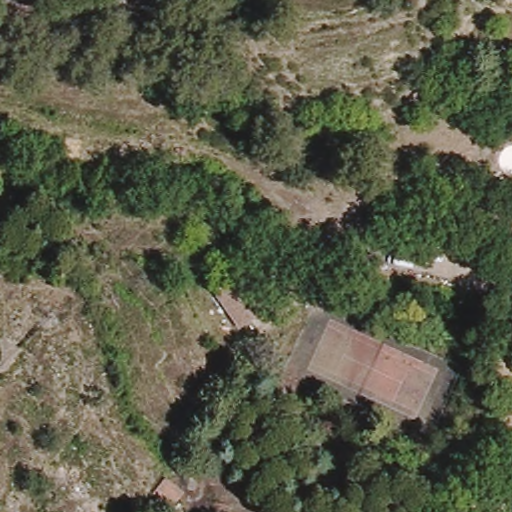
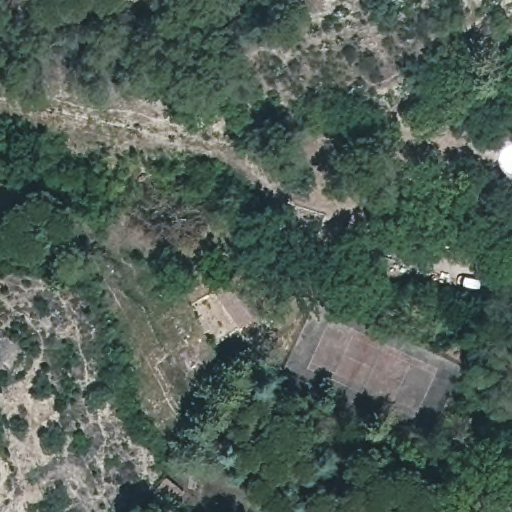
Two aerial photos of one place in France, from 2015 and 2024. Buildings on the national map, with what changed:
unchanged [(265,311),(241,328),(215,291),(240,273),(265,311)]
unchanged [(178,491),(165,507),(149,493),(160,477),(178,491)]

